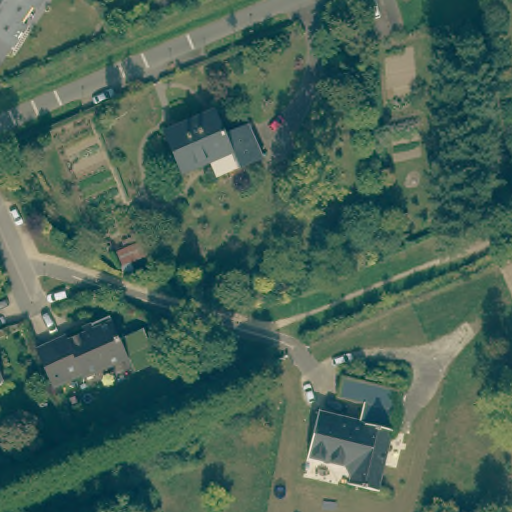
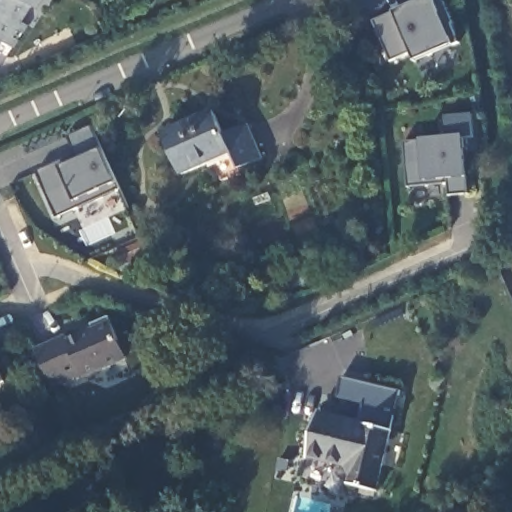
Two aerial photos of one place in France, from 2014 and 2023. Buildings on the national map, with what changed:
unchanged [(37,7),(30,2),(19,20),(27,25),(14,46),(0,37),(0,0),(42,0),(37,7)]
new [(395,12),(422,0),(433,0),(435,5),(441,1),(458,42),(453,45),(415,60),(412,52),(390,61),(374,20),(395,12)]
unchanged [(241,175),(220,184),(211,162),(182,175),(165,135),(213,113),(225,141),(239,133),(249,128),(263,158),(250,164),(240,169),(241,175)]
new [(64,160),(66,166),(77,161),(75,156),(76,155),(69,137),(93,126),(121,190),(58,218),(37,172),(64,160)]
new [(421,140),(463,136),(467,178),(469,192),(449,195),(449,183),(408,187),(405,142),(421,140)]
unchanged [(76,336),(79,341),(104,330),(101,325),(120,317),(137,359),(94,378),(91,376),(63,388),(62,387),(46,350),(76,336)]
unchanged [(0,387),(0,373),(4,382),(0,387)]
unchanged [(400,396),(379,498),(355,492),(357,484),(347,475),(310,467),(318,422),(359,430),(363,411),(335,405),(340,382),(400,396)]

